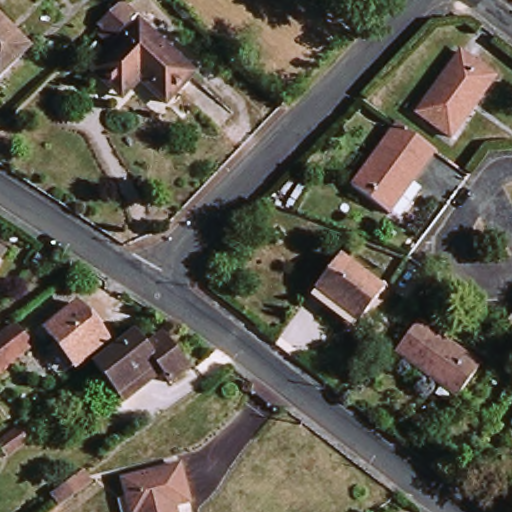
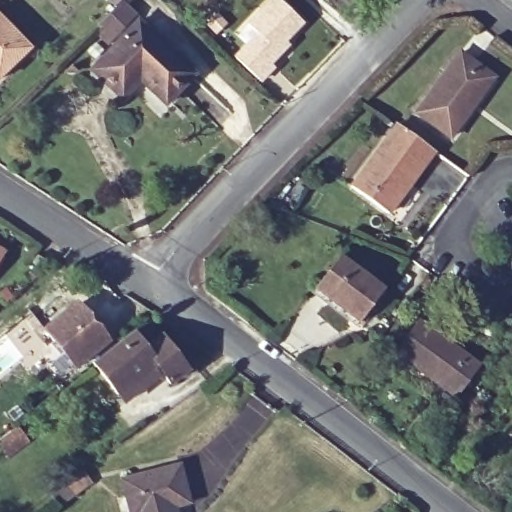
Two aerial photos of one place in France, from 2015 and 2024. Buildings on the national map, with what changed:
unchanged [(103,30),(108,26),(104,22),(127,0),(129,0),(141,14),(118,36),(113,40),(103,30)]
new [(271,57),(264,64),(267,67),(253,82),(229,57),(253,35),(243,25),(268,0),(274,0),(297,23),(279,42),(283,45),(271,57)]
unchanged [(30,49),(0,78),(0,19),(30,49)]
unchanged [(116,84),(99,69),(144,22),(202,77),(173,107),(144,80),(128,96),(116,84)]
unchanged [(500,77),(455,138),(421,113),(466,52),(500,77)]
unchanged [(359,187),(403,126),(442,154),(396,214),(359,187)]
unchanged [(0,269),(0,243),(12,251),(0,269)]
unchanged [(363,326),(312,287),(338,255),(388,292),(363,326)]
unchanged [(50,367),(65,356),(52,340),(86,312),(114,346),(66,386),(50,367)]
unchanged [(463,393),(404,348),(426,319),(486,364),(463,393)]
unchanged [(21,326),(39,347),(3,377),(0,373),(0,342),(21,326)]
unchanged [(124,397),(101,367),(139,337),(150,351),(168,339),(195,373),(177,388),(169,377),(130,405),(124,397)]
unchanged [(18,432),(26,443),(6,457),(0,448),(0,444),(18,432)]
unchanged [(195,505),(180,508),(182,512),(131,512),(129,502),(124,485),(184,468),(195,505)]
unchanged [(51,502),(84,477),(88,484),(57,511),(51,502)]

